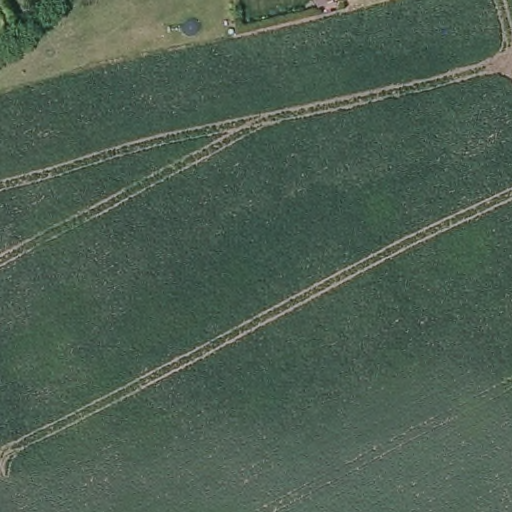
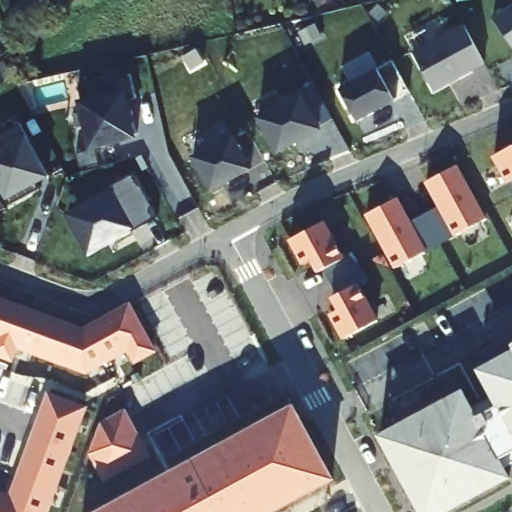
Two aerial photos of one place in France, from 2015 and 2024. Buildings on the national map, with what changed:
new [(512,6),(512,48),(493,20),(512,6)]
new [(484,63),(456,78),(455,76),(447,81),(448,83),(433,91),(413,53),(464,25),(484,63)]
new [(376,69),(394,102),(356,122),(338,90),(376,69)]
new [(131,75),(136,99),(123,102),(125,112),(131,111),(136,135),(91,146),(78,88),(131,75)]
new [(300,95),(319,128),(289,144),(289,145),(276,153),(258,118),(300,95)]
new [(3,150),(0,144),(0,133),(18,123),(47,177),(35,184),(38,190),(8,206),(0,190),(0,151),(3,150)]
new [(231,136),(249,170),(234,178),(234,177),(209,190),(192,158),(231,136)]
new [(512,146),(512,193),(492,157),(512,146)]
new [(487,218),(394,270),(364,216),(399,197),(412,221),(438,206),(424,183),(458,165),(487,218)]
new [(157,218),(140,228),(138,225),(121,235),(120,233),(114,236),(115,238),(88,253),(67,215),(113,191),(110,186),(133,174),(157,218)]
new [(344,255),(353,251),(369,282),(361,286),(379,320),(343,340),(329,315),(338,311),(330,298),(338,295),(325,271),(318,274),(311,261),(301,266),(288,240),(326,221),(344,255)]
new [(158,353),(134,366),(126,353),(85,375),(19,349),(13,363),(0,358),(0,296),(84,326),(131,301),(158,353)]
new [(0,512),(0,491),(8,494),(47,392),(89,408),(49,512),(0,512)]
new [(276,512),(95,512),(294,405),(335,480),(276,512)]
new [(149,457),(104,483),(88,453),(100,423),(125,410),(149,457)]
new [(512,452),(512,463),(504,467),(499,459),(512,452)]

